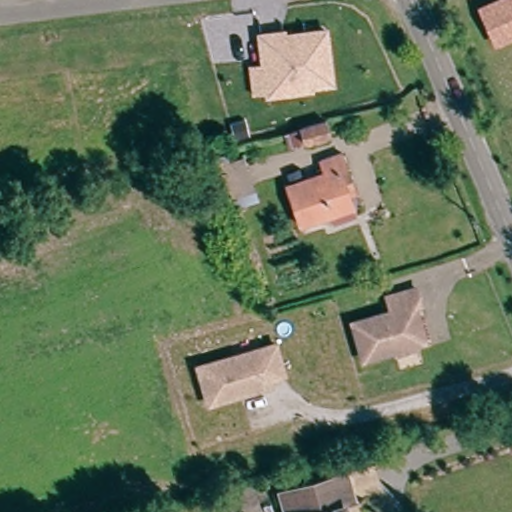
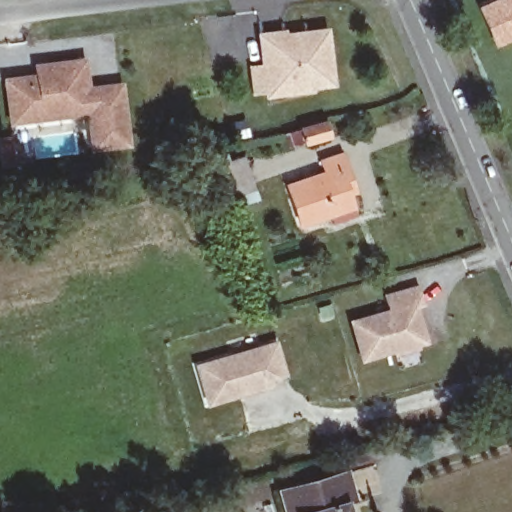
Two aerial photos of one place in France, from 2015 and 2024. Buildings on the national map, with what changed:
unchanged [(481,8),(498,0),(512,0),(512,36),(496,43),(481,8)]
unchanged [(250,62),(261,62),(258,32),(287,26),(289,31),(329,26),(337,83),(316,86),(316,91),(270,97),(267,91),(253,94),(250,62)]
new [(22,119),(17,76),(49,72),(48,62),(95,57),(99,85),(132,82),(139,141),(104,145),(100,110),(95,110),(55,115),(22,119)]
unchanged [(329,136),(303,143),(299,127),(325,121),(329,136)]
unchanged [(355,175),(345,178),(351,202),(298,217),(288,177),(323,167),(319,153),(347,146),(355,175)]
unchanged [(216,159),(244,152),(260,197),(230,205),(216,159)]
unchanged [(425,300),(419,302),(428,337),(365,353),(355,317),(396,306),(392,292),(420,284),(425,300)]
unchanged [(270,376),(272,383),(210,399),(200,362),(278,342),(286,372),(270,376)]
unchanged [(348,502),(351,512),(295,512),(287,483),(357,466),(366,497),(348,502)]

